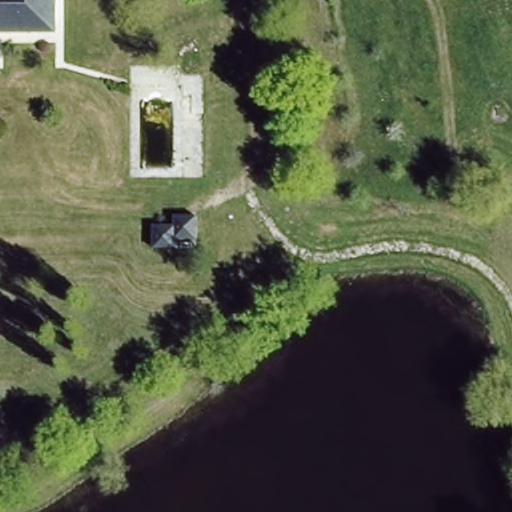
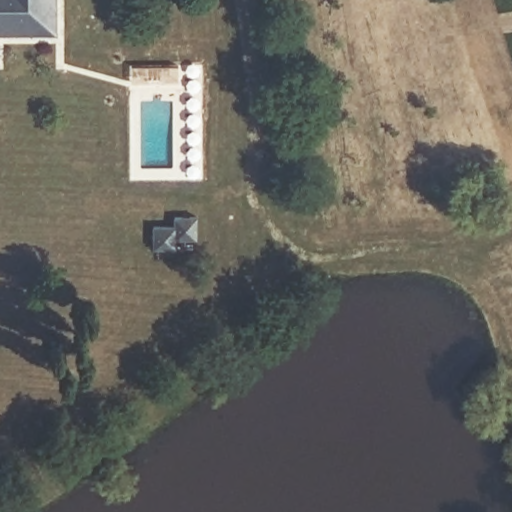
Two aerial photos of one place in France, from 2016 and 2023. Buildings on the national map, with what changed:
unchanged [(55,0),(54,31),(0,31),(0,0),(55,0)]
unchanged [(148,225),(171,225),(171,212),(198,213),(198,239),(176,239),(176,248),(148,249),(148,225)]

